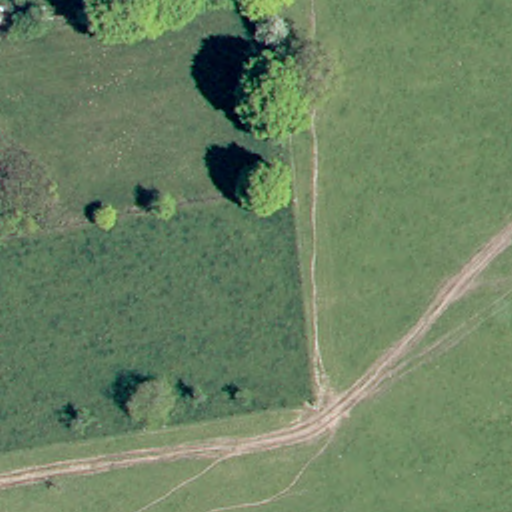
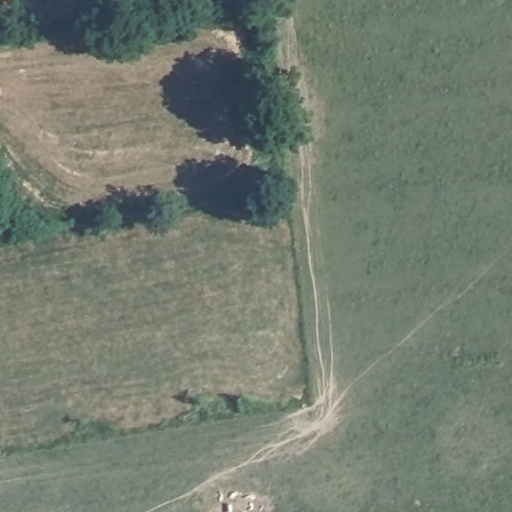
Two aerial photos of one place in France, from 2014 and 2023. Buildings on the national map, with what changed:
[]

